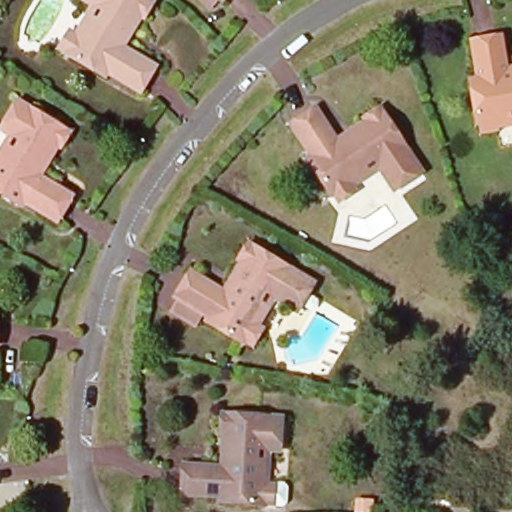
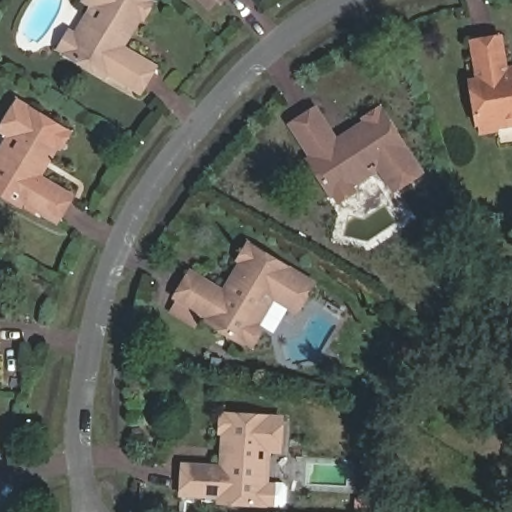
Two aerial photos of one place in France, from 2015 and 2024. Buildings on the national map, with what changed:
unchanged [(81,42),(92,21),(100,25),(105,15),(90,7),(91,3),(87,1),(88,0),(142,0),(152,6),(152,11),(146,22),(141,21),(135,32),(125,50),(155,68),(141,92),(109,75),(106,77),(72,60),(61,54),(70,37),(81,42)]
unchanged [(481,131),(476,123),(475,78),(480,78),(478,39),(507,38),(508,67),(510,67),(512,66),(512,130),(487,131),(481,131)]
unchanged [(11,151),(17,153),(22,143),(8,136),(10,131),(7,129),(16,110),(20,111),(21,108),(69,133),(70,138),(64,149),(59,150),(52,161),(42,180),(74,197),(60,221),(29,205),(26,209),(0,195),(0,171),(11,151)]
unchanged [(355,118),(363,113),(377,115),(415,173),(388,190),(371,162),(361,168),(364,175),(345,187),(346,190),(346,195),(336,202),(331,201),(303,161),(308,156),(290,127),(312,112),(332,142),(349,132),(355,127),(355,118)]
unchanged [(231,253),(237,244),(251,244),(306,276),(290,305),(260,289),(255,299),(261,302),(248,324),(252,328),(252,332),(247,338),(244,339),(234,336),(234,338),(202,318),(205,316),(171,297),(187,269),(220,289),(229,271),(234,261),(231,253)]
unchanged [(1,313),(1,342),(0,342),(0,313),(1,313)]
unchanged [(280,503),(276,506),(257,506),(214,504),(214,499),(179,497),(180,467),(216,469),(216,464),(217,450),(217,434),(215,431),(215,419),(219,416),(273,419),(273,424),(277,424),(276,445),(272,445),(272,452),(271,484),(277,484),(280,488),(280,503)]

